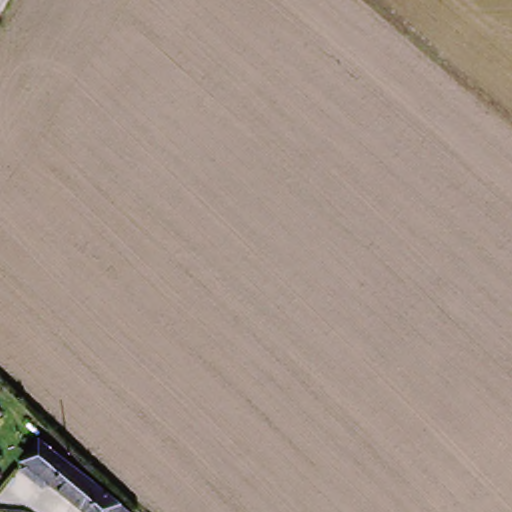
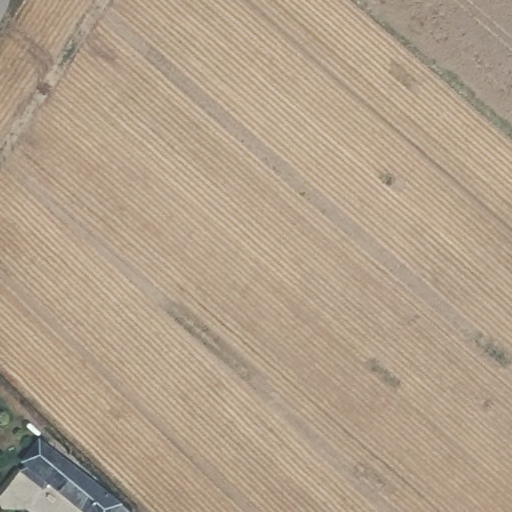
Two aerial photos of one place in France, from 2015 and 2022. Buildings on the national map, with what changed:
unchanged [(0,415),(4,419),(0,423),(0,415)]
unchanged [(29,468),(53,444),(122,512),(74,512),(29,468)]

